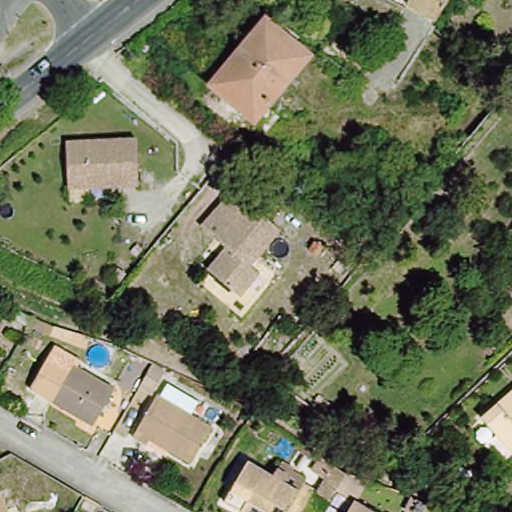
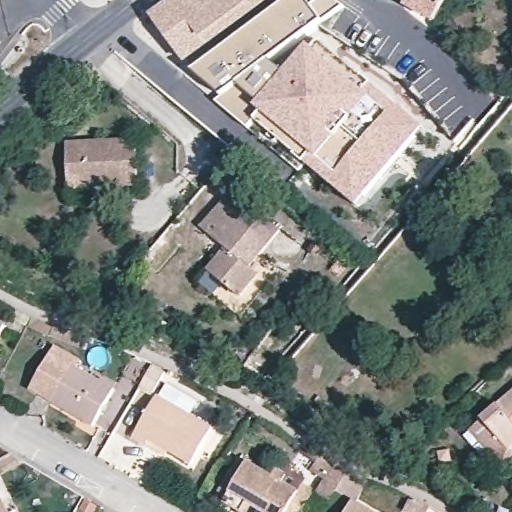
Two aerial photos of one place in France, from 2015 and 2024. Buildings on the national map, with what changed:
new [(275,0),(187,65),(151,16),(172,0),(275,0)]
new [(249,129),(218,104),(223,98),(194,72),(286,0),(306,0),(310,6),(319,0),(335,0),(345,7),(322,23),(270,60),(286,74),(310,46),(313,49),(320,41),(425,129),(359,209),(257,120),(249,129)]
unchanged [(406,9),(412,0),(448,0),(433,24),(406,9)]
unchanged [(449,0),(464,0),(459,8),(449,0)]
demolished [(227,90),(211,76),(266,12),(313,51),(280,89),(288,96),(277,108),(271,101),(257,116),(227,90)]
demolished [(440,42),(427,65),(414,59),(430,30),(440,42)]
unchanged [(68,191),(67,184),(67,174),(65,144),(137,141),(139,188),(104,189),(90,190),(68,191)]
unchanged [(222,248),(205,234),(213,223),(234,197),(281,238),(252,273),(260,282),(246,300),(242,304),(211,278),(212,275),(229,254),(222,248)]
unchanged [(124,269),(117,281),(108,275),(117,264),(124,269)]
unchanged [(6,322),(0,335),(0,318),(6,322)]
unchanged [(52,329),(48,337),(23,328),(27,319),(52,329)]
unchanged [(60,351),(56,359),(85,376),(112,391),(94,426),(67,413),(27,391),(48,345),(60,351)]
unchanged [(153,370),(165,375),(153,397),(142,389),(153,370)]
unchanged [(215,424),(194,464),(153,441),(148,447),(135,440),(160,394),(215,424)]
unchanged [(512,407),(512,450),(491,426),(512,407)]
unchanged [(309,512),(240,512),(226,504),(250,461),(276,477),(283,465),(310,481),(308,485),(320,492),(309,512)]
unchanged [(332,484),(338,474),(350,480),(364,484),(354,502),(342,494),(344,491),(332,484)]
unchanged [(12,512),(0,512),(0,490),(12,512)]
unchanged [(421,512),(406,503),(413,490),(429,497),(421,512)]
unchanged [(361,504),(374,512),(356,512),(361,504)]

